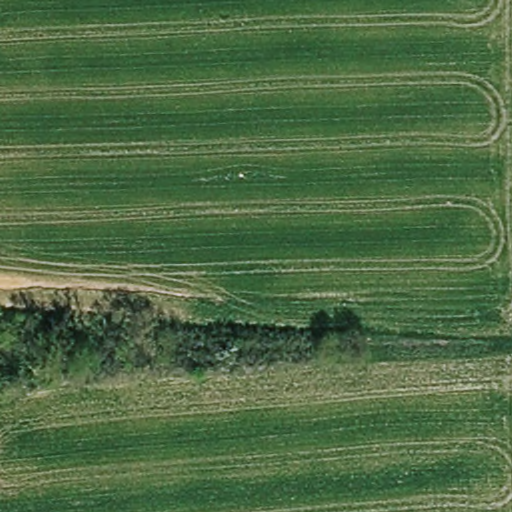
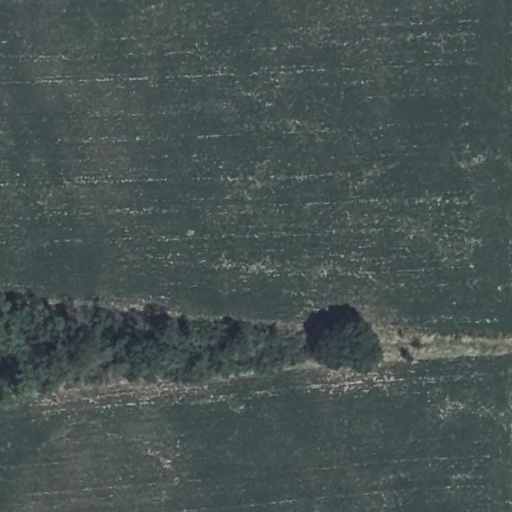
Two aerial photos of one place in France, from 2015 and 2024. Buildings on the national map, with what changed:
[]

